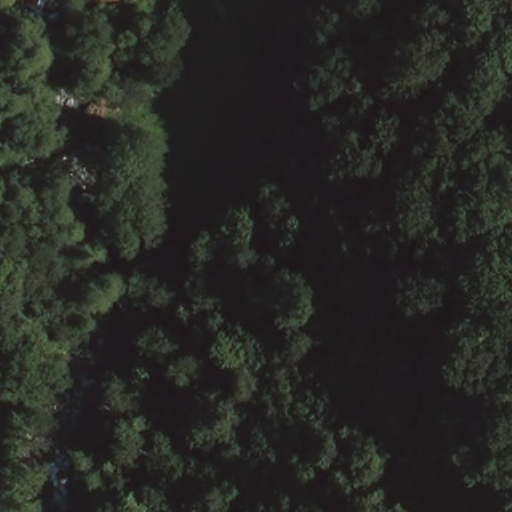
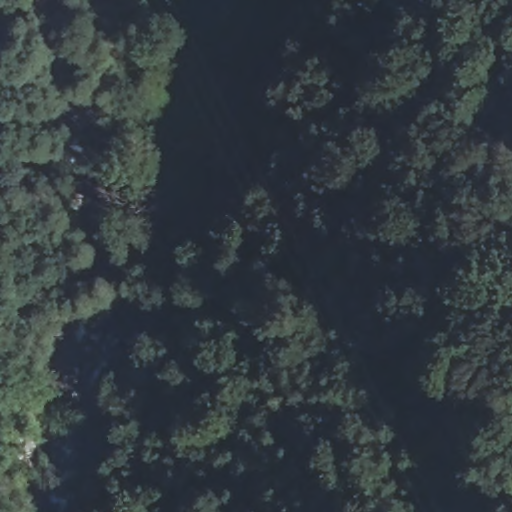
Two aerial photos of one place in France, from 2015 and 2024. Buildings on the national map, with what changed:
[]

